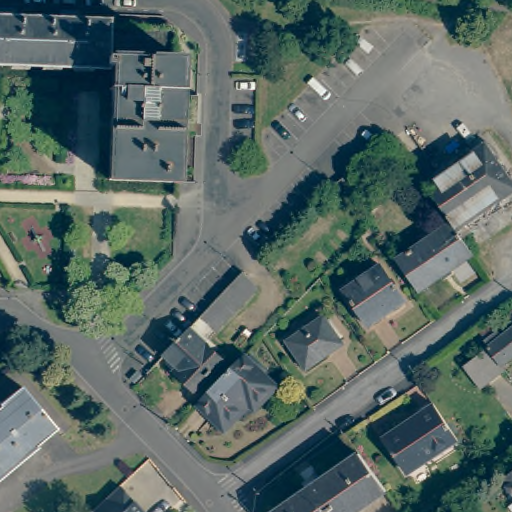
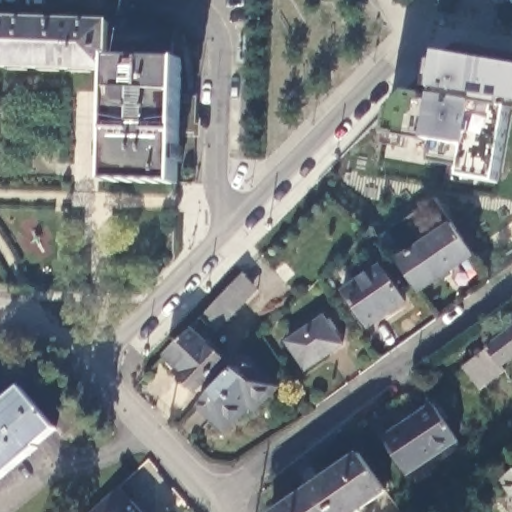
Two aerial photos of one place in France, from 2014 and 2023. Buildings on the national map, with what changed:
unchanged [(13,11),(13,19),(30,20),(29,67),(0,66),(0,10),(13,11)]
unchanged [(30,20),(60,21),(60,12),(76,14),(76,22),(107,22),(108,28),(106,65),(106,70),(29,67),(30,20)]
unchanged [(183,132),(178,132),(177,183),(109,181),(111,100),(111,99),(111,97),(111,92),(109,92),(108,92),(109,90),(111,90),(111,80),(112,68),(112,65),(106,65),(108,28),(174,31),(173,60),(181,61),(180,92),(183,92),(182,95),(180,95),(179,107),(184,107),(183,132)]
new [(512,66),(512,102),(509,102),(497,181),(462,177),(468,145),(428,140),(435,97),(436,90),(434,89),(440,54),(512,66)]
demolished [(512,185),(512,201),(462,236),(451,219),(447,213),(435,196),(427,184),(484,145),(512,185)]
demolished [(369,187),(344,207),(329,191),(355,170),(369,187)]
unchanged [(419,288),(396,257),(451,219),(462,236),(473,251),(451,266),(440,273),(419,288)]
unchanged [(344,291),(380,266),(405,302),(368,327),(344,291)]
unchanged [(259,289),(217,332),(202,317),(243,273),(259,289)]
unchanged [(486,349),(491,346),(480,332),(490,325),(493,327),(512,315),(512,358),(502,366),(506,371),(479,391),(461,367),(486,349)]
unchanged [(199,320),(202,317),(217,332),(206,343),(224,362),(195,392),(179,377),(183,372),(165,356),(199,320)]
unchanged [(286,342),(323,317),(342,346),(305,370),(286,342)]
unchanged [(244,357),(275,387),(253,407),(248,403),(223,428),(198,405),(244,357)]
unchanged [(1,404),(20,387),(56,429),(37,446),(37,447),(0,479),(0,403),(1,404)]
unchanged [(458,442),(408,476),(382,439),(434,407),(458,442)]
unchanged [(356,512),(275,512),(307,490),(304,486),(318,476),(321,480),(359,455),(386,491),(356,512)]
unchanged [(512,463),(512,494),(497,474),(512,463)]
unchanged [(84,512),(83,511),(110,486),(114,482),(139,512),(84,512)]
unchanged [(400,501),(410,495),(422,512),(403,512),(406,510),(400,501)]

